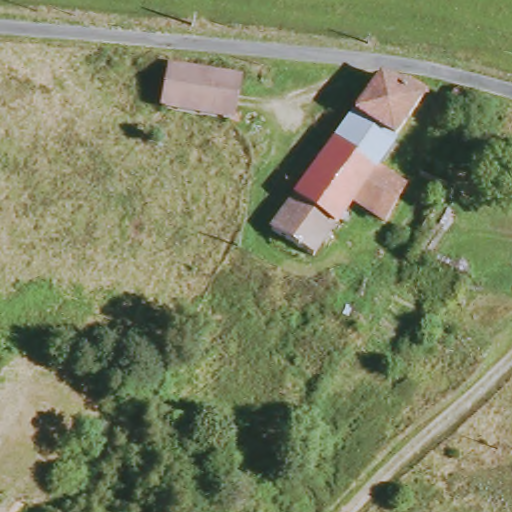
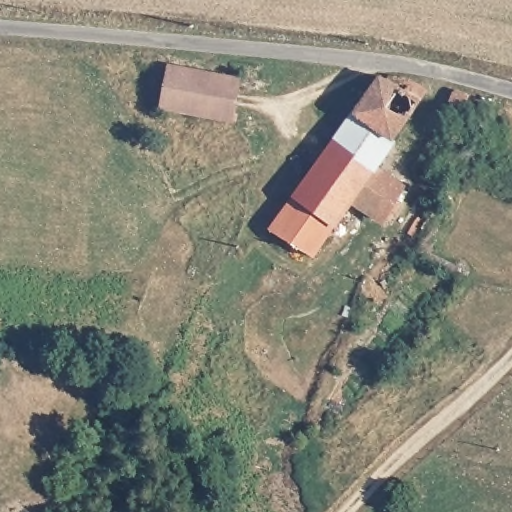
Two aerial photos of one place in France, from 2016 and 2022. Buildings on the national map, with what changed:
unchanged [(234,122),(168,108),(176,66),(242,79),(234,122)]
unchanged [(414,77),(431,82),(441,90),(431,103),(403,141),(361,112),(388,75),(392,75),(414,77)]
unchanged [(467,112),(455,107),(457,90),(470,94),(467,112)]
unchanged [(302,195),(314,177),(342,139),(361,112),(403,141),(384,167),(414,188),(391,223),(360,202),(343,225),(302,195)]
unchanged [(302,195),(343,225),(321,257),(278,227),(302,195)]

